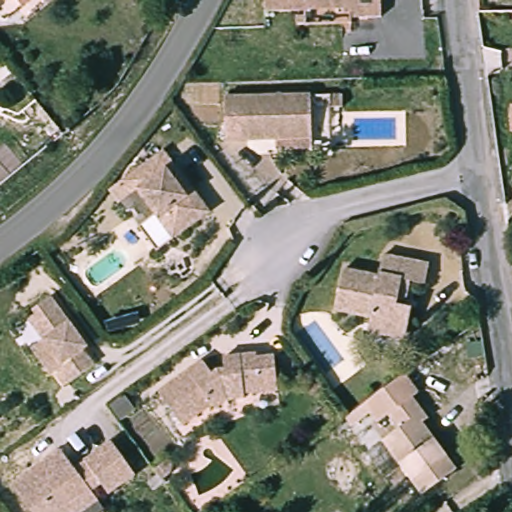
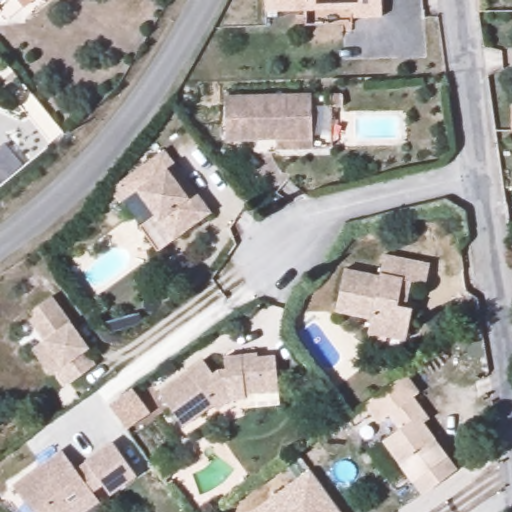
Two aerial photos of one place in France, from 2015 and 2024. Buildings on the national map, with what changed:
unchanged [(384,0),(385,17),(355,17),(354,9),(268,10),(268,0),(384,0)]
unchanged [(512,80),(512,88),(512,95),(503,95),(505,80),(512,80)]
unchanged [(223,95),(308,92),(310,135),(225,139),(223,95)]
unchanged [(512,103),(512,131),(510,131),(510,103),(512,103)]
unchanged [(163,211),(144,186),(137,192),(127,179),(169,146),(191,175),(217,207),(209,213),(165,247),(147,224),(163,211)]
unchanged [(372,315),(337,308),(345,266),(381,274),(385,252),(431,261),(427,281),(412,278),(404,276),(398,302),(406,304),(413,305),(408,330),(407,336),(370,329),(372,322),(372,315)]
unchanged [(44,345),(30,324),(37,318),(33,313),(52,300),(87,351),(83,355),(94,369),(67,387),(57,373),(50,378),(37,360),(32,353),(44,345)]
unchanged [(157,388),(200,356),(210,370),(216,365),(222,363),(218,351),(248,340),(250,343),(267,336),(279,368),(248,380),(250,385),(227,395),(215,405),(211,400),(182,421),(157,388)]
unchanged [(411,374),(423,390),(418,395),(430,411),(427,415),(463,466),(428,493),(390,442),(402,432),(390,416),(382,420),(371,405),(411,374)]
new [(125,383),(143,408),(120,425),(102,401),(125,383)]
unchanged [(57,512),(37,512),(15,480),(65,445),(85,475),(95,468),(88,457),(115,438),(137,471),(110,490),(103,480),(93,486),(100,496),(77,512),(59,512),(58,511),(57,512)]
new [(310,470),(340,512),(252,512),(310,470)]

